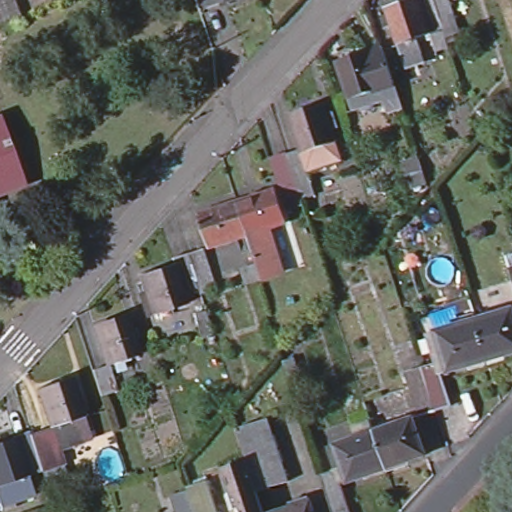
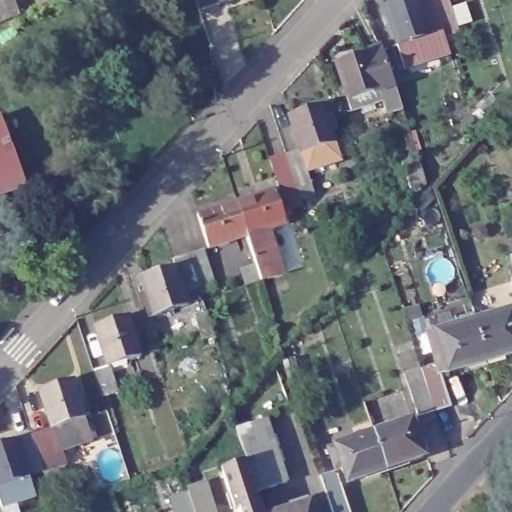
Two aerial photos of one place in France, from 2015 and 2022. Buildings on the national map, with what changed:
unchanged [(0,25),(0,0),(11,0),(19,18),(0,25)]
unchanged [(199,0),(224,0),(202,7),(199,0)]
unchanged [(387,5),(404,0),(450,0),(462,36),(449,40),(444,28),(432,31),(417,36),(426,60),(407,66),(399,42),(387,5)]
unchanged [(404,106),(387,111),(383,98),(352,108),(349,96),(381,86),(370,50),(384,45),(404,106)]
unchanged [(381,86),(349,96),(337,60),(370,50),(381,86)]
unchanged [(281,186),(272,155),(287,150),(287,152),(301,147),(290,111),(323,101),(327,112),(334,110),(339,125),(332,127),(336,139),(342,157),(307,168),(315,192),(302,196),(297,181),(295,182),(302,202),(287,206),(281,186)]
unchanged [(25,186),(0,195),(0,120),(1,119),(25,186)]
unchanged [(257,262),(255,252),(248,232),(210,244),(199,210),(237,198),(275,187),(286,220),(270,225),(276,246),(284,270),(262,277),(247,281),(242,267),(257,262)]
unchanged [(149,291),(144,274),(177,262),(175,256),(188,252),(205,247),(217,286),(201,291),(199,285),(185,289),(189,301),(156,312),(150,314),(142,293),(149,291)]
unchanged [(509,267),(512,266),(512,276),(509,267)]
unchanged [(474,318),(512,307),(512,350),(487,357),(474,318)]
unchanged [(94,324),(128,314),(140,353),(110,362),(119,389),(102,394),(92,368),(107,363),(94,324)]
unchanged [(449,368),(436,329),(474,318),(487,357),(449,368)]
unchanged [(435,409),(417,414),(409,385),(407,380),(424,374),(421,365),(437,360),(440,369),(451,404),(435,409)]
unchanged [(71,375),(84,414),(52,425),(38,386),(71,375)]
unchanged [(0,500),(0,443),(15,438),(13,435),(29,430),(30,432),(52,425),(84,414),(91,435),(37,453),(42,469),(27,474),(34,494),(2,504),(0,500)]
unchanged [(373,429),(410,416),(422,454),(385,467),(373,429)]
unchanged [(265,417),(286,480),(255,490),(245,458),(235,426),(265,417)]
unchanged [(346,480),(333,443),(373,429),(385,467),(346,480)]
unchanged [(239,505),(234,507),(221,465),(245,458),(255,490),(262,512),(241,512),(239,505)]
unchanged [(328,471),(336,473),(349,512),(331,512),(319,474),(328,471)]
unchanged [(192,506),(185,484),(205,478),(215,512),(175,512),(192,506)]
unchanged [(310,501),(313,512),(273,512),(310,501)]

